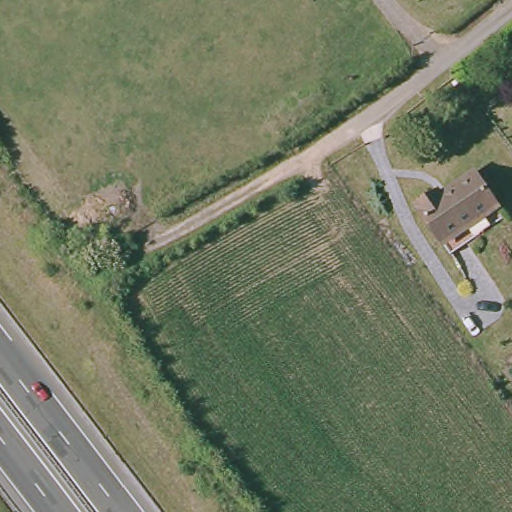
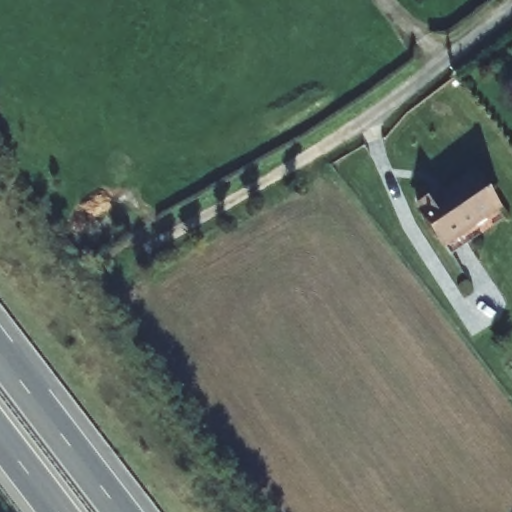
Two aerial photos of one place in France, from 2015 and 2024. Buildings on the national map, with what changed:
unchanged [(444,249),(418,208),(440,192),(444,197),(479,174),(502,210),(444,249)]

